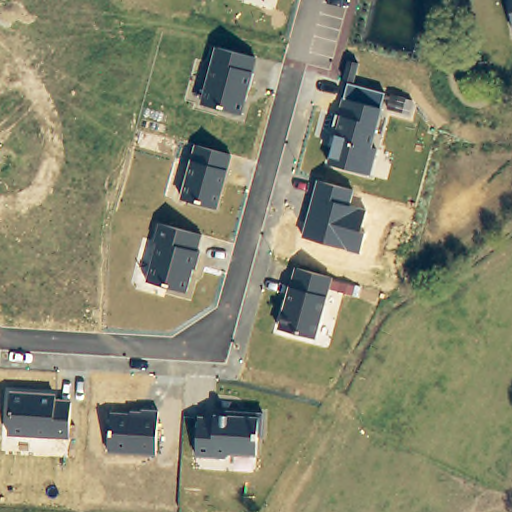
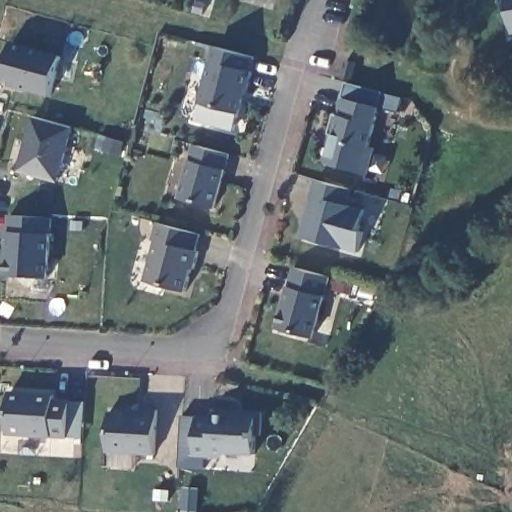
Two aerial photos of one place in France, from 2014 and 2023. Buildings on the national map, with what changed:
unchanged [(508,0),(512,0),(512,25),(508,0)]
new [(51,97),(1,84),(11,42),(63,56),(51,97)]
unchanged [(216,46),(257,57),(253,72),(243,116),(202,103),(216,46)]
unchanged [(331,156),(336,134),(334,129),(331,129),(336,114),(339,115),(342,97),(344,98),(348,84),(385,93),(381,108),(372,147),(378,149),(371,175),(329,162),(331,156)]
new [(60,182),(18,172),(33,117),(75,129),(60,182)]
unchanged [(190,158),(192,158),(195,145),(232,155),(217,210),(181,199),(190,158)]
unchanged [(317,181),(354,190),(351,206),(367,209),(361,231),(365,231),(359,253),(302,237),(317,181)]
new [(50,278),(6,277),(8,231),(9,216),(54,218),(50,278)]
unchanged [(158,241),(154,240),(159,224),(202,234),(199,250),(201,251),(196,268),(193,268),(187,292),(147,282),(158,241)]
unchanged [(289,286),(290,286),(295,267),(361,286),(359,296),(329,287),(315,337),(278,327),(289,286)]
unchanged [(10,390),(56,393),(56,400),(71,400),(69,438),(9,435),(10,390)]
unchanged [(110,411),(130,412),(130,410),(141,411),(142,408),(158,410),(155,455),(108,452),(110,411)]
unchanged [(215,416),(215,412),(228,414),(226,410),(266,411),(265,437),(258,437),(256,456),(230,453),(225,457),(196,456),(199,415),(215,416)]

